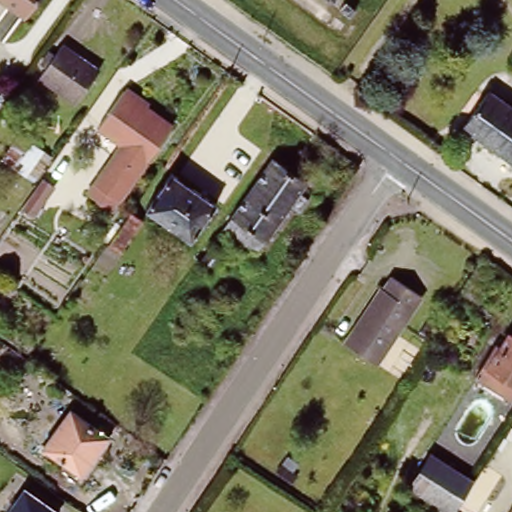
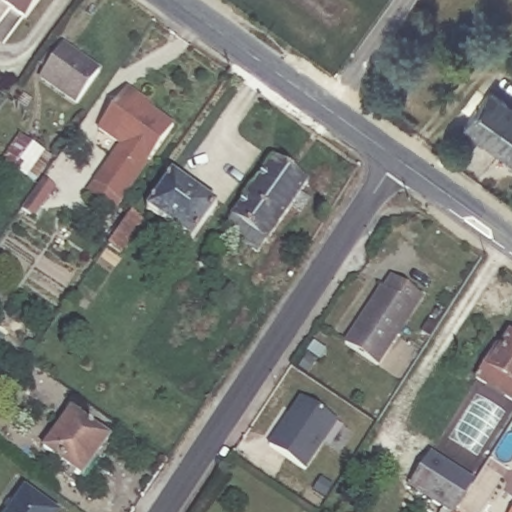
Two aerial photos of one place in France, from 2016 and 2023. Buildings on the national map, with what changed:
unchanged [(25,19),(0,2),(0,0),(38,0),(25,19)]
unchanged [(95,74),(73,105),(38,80),(61,49),(95,74)]
unchanged [(88,189),(95,179),(115,151),(117,148),(120,149),(124,142),(102,125),(100,123),(127,87),(175,123),(121,198),(115,208),(88,189)]
unchanged [(512,168),(462,132),(487,97),(512,114),(512,168)]
unchanged [(51,157),(49,161),(33,182),(9,165),(16,154),(26,140),(51,157)]
unchanged [(274,158),(305,180),(298,192),(310,198),(300,213),(288,205),(257,251),(225,228),(274,158)]
unchanged [(219,210),(216,213),(223,217),(211,234),(205,230),(193,246),(148,215),(174,179),(219,210)]
unchanged [(41,180),(51,188),(30,218),(19,211),(41,180)]
unchanged [(135,217),(146,225),(127,251),(117,244),(127,229),(135,217)]
unchanged [(207,244),(220,253),(206,272),(195,264),(207,244)]
unchanged [(483,258),(493,265),(487,274),(495,279),(472,315),(454,303),(483,258)]
unchanged [(379,294),(382,295),(390,284),(420,303),(375,370),(342,349),(379,294)]
unchanged [(512,386),(489,372),(511,337),(512,338),(512,386)]
new [(299,397),(334,422),(301,469),(266,445),(299,397)]
unchanged [(107,436),(80,474),(41,449),(69,410),(107,436)]
unchanged [(457,512),(404,512),(400,509),(412,490),(408,488),(430,453),(475,482),(457,512)]
unchanged [(49,512),(13,512),(25,495),(49,512)]

